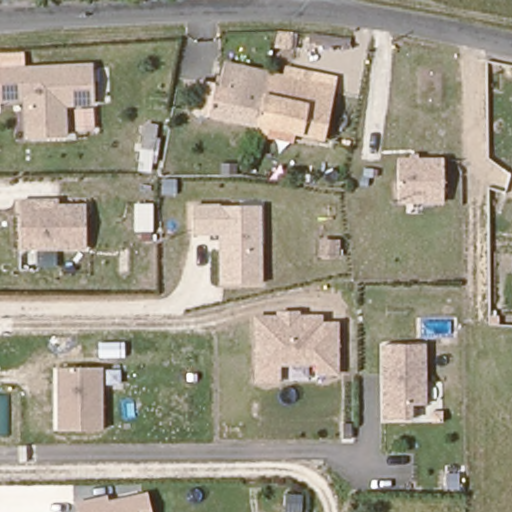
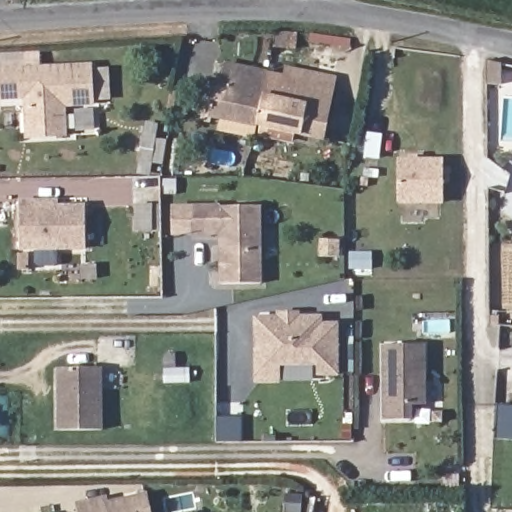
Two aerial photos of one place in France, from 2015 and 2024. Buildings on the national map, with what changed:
unchanged [(326,137),(256,125),(192,113),(199,80),(217,82),(222,62),(267,71),(288,75),(290,63),(337,72),(326,137)]
unchanged [(93,131),(75,132),(74,107),(67,108),(67,136),(25,138),(23,100),(0,100),(0,68),(89,63),(93,131)]
unchanged [(397,205),(397,159),(442,159),(441,204),(397,205)]
unchanged [(34,200),(34,205),(82,205),(83,250),(17,251),(19,200),(34,200)]
unchanged [(192,237),(191,206),(259,206),(261,282),(218,283),(217,237),(192,237)]
unchanged [(254,317),(322,315),(322,322),(337,322),(337,376),(316,377),(316,366),(280,367),(281,383),(253,383),(254,317)]
unchanged [(380,345),(425,347),(426,405),(412,405),(412,421),(382,420),(380,345)]
unchanged [(100,368),(102,430),(56,431),(56,368),(100,368)]
new [(498,405),(512,406),(512,439),(496,437),(498,405)]
unchanged [(107,497),(107,501),(146,493),(150,512),(75,512),(73,504),(107,497)]

